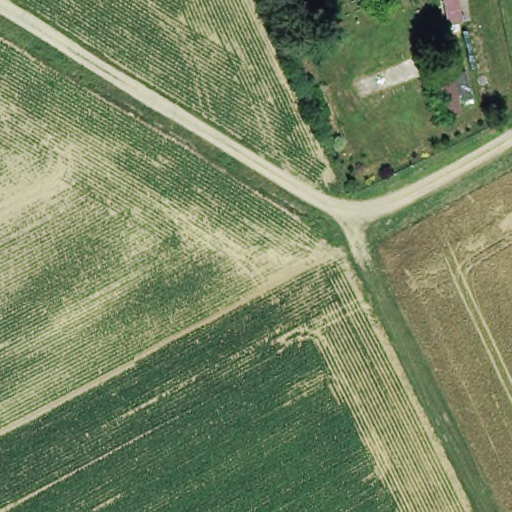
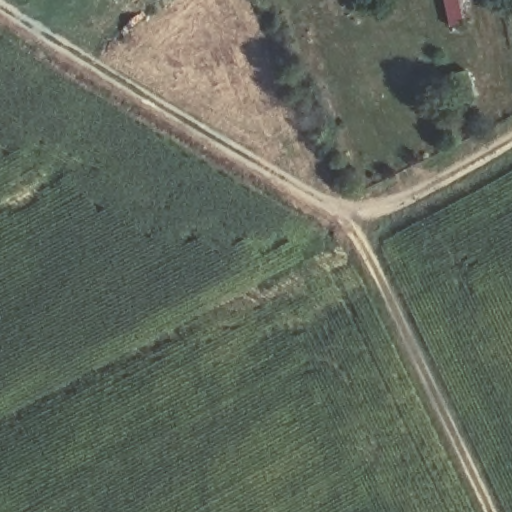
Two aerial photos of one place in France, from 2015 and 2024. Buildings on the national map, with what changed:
unchanged [(465,71),(473,97),(458,103),(450,77),(465,71)]

